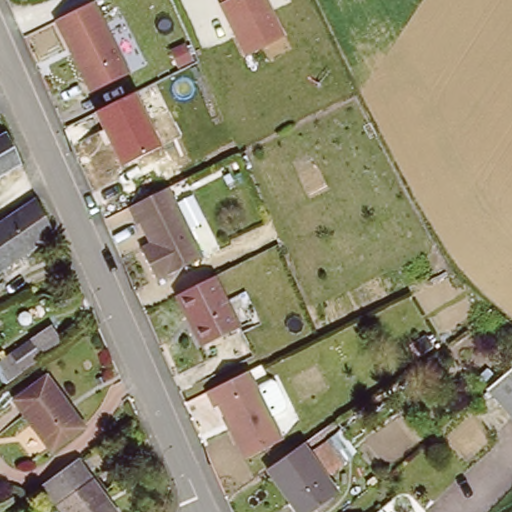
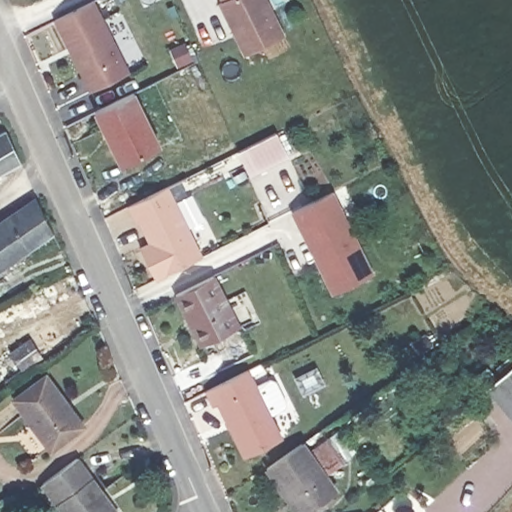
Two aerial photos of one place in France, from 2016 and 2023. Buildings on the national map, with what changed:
unchanged [(129,72),(89,91),(53,20),(95,0),(129,72)]
unchanged [(243,57),(217,0),(266,0),(284,39),(243,57)]
unchanged [(134,90),(162,145),(120,165),(94,110),(134,90)]
new [(250,179),(237,152),(276,133),(288,159),(250,179)]
unchanged [(0,185),(0,141),(10,134),(26,169),(0,185)]
unchanged [(202,256),(155,279),(139,245),(150,239),(140,220),(136,222),(127,205),(167,187),(202,256)]
new [(331,297),(290,212),(332,191),(374,275),(331,297)]
unchanged [(0,230),(40,201),(57,234),(0,275),(0,230)]
unchanged [(242,327),(203,345),(177,292),(215,274),(242,327)]
unchanged [(30,377),(18,361),(37,346),(49,362),(30,377)]
unchanged [(249,367),(282,435),(244,453),(219,401),(215,403),(207,388),(249,367)]
unchanged [(0,371),(0,368),(2,370),(0,371)]
unchanged [(489,390),(512,370),(512,417),(489,390)]
unchanged [(87,430),(55,455),(17,404),(50,379),(87,430)]
unchanged [(0,390),(0,381),(5,387),(0,390)]
unchanged [(315,512),(298,512),(267,469),(302,444),(339,495),(315,512)]
unchanged [(52,486),(67,475),(87,460),(115,498),(112,501),(119,512),(70,512),(52,486)]

